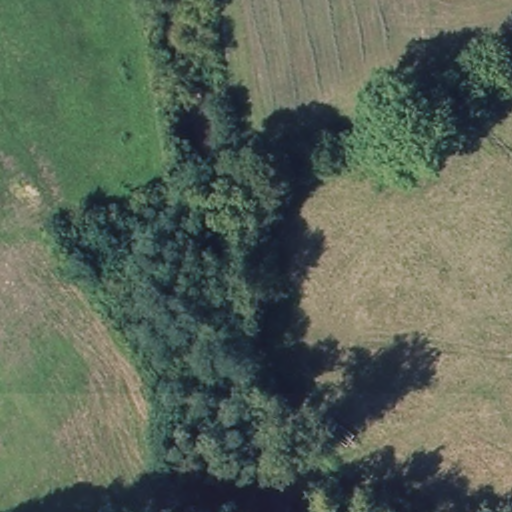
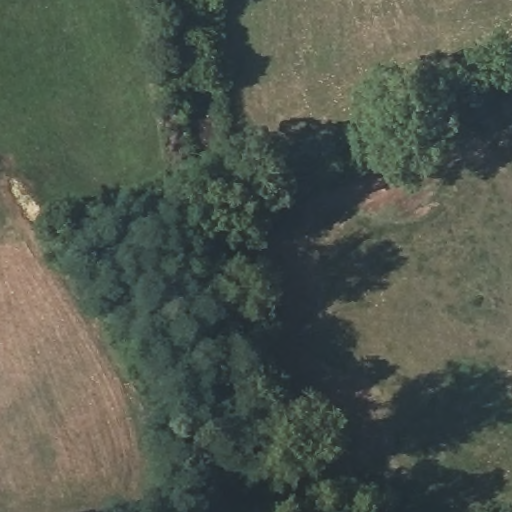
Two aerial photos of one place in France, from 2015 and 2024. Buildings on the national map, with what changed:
unchanged [(319,429),(329,417),(360,441),(349,456),(319,429)]

